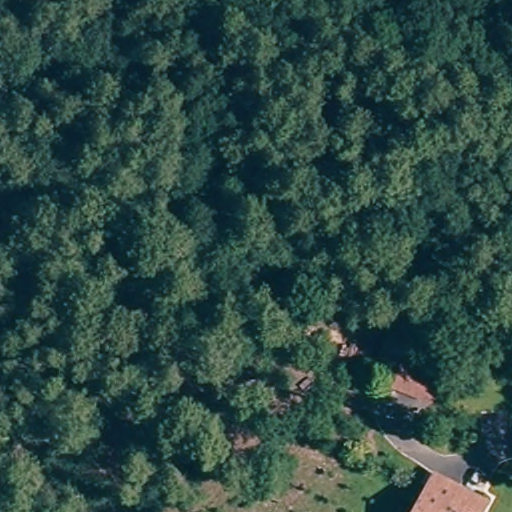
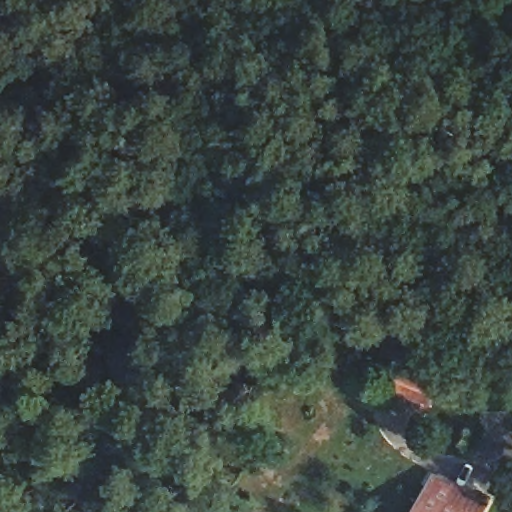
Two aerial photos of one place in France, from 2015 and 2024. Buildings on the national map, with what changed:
unchanged [(443,376),(439,407),(401,402),(405,371),(443,376)]
unchanged [(435,474),(487,504),(483,512),(413,512),(435,474)]

